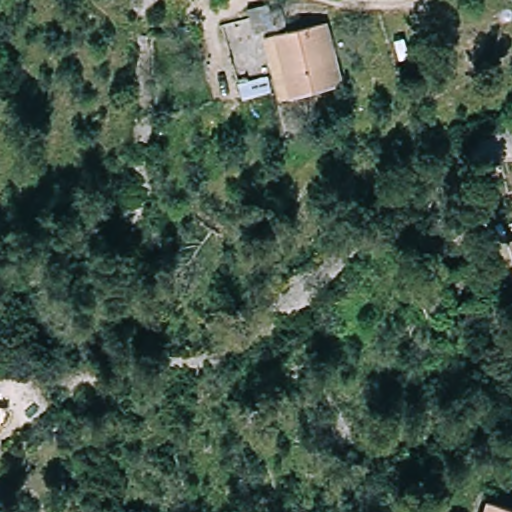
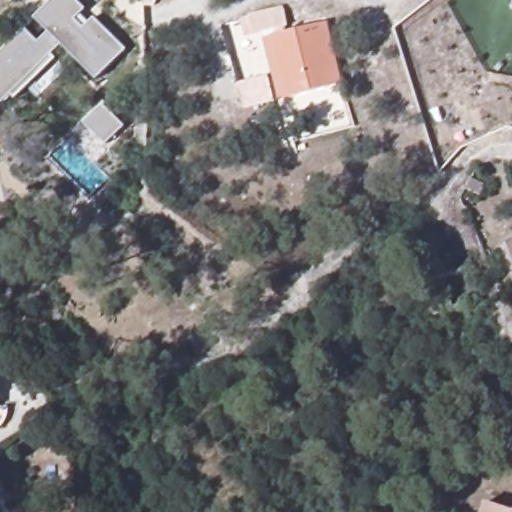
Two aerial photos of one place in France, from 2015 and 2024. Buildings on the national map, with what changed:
new [(39,40),(49,30),(36,17),(53,0),(78,0),(87,9),(83,13),(90,22),(95,16),(128,49),(99,79),(64,45),(54,54),(57,58),(17,98),(13,94),(4,103),(0,99),(0,53),(26,27),(39,40)]
unchanged [(252,9),(272,3),(275,11),(287,8),(291,26),(259,33),(252,9)]
unchanged [(268,37),(332,21),(348,85),(284,100),(268,37)]
unchanged [(248,98),(244,82),(271,76),(275,92),(248,98)]
unchanged [(506,244),(512,241),(512,258),(506,244)]
demolished [(11,453),(42,450),(45,484),(14,487),(11,453)]
unchanged [(483,504),(505,512),(480,512),(483,504)]

